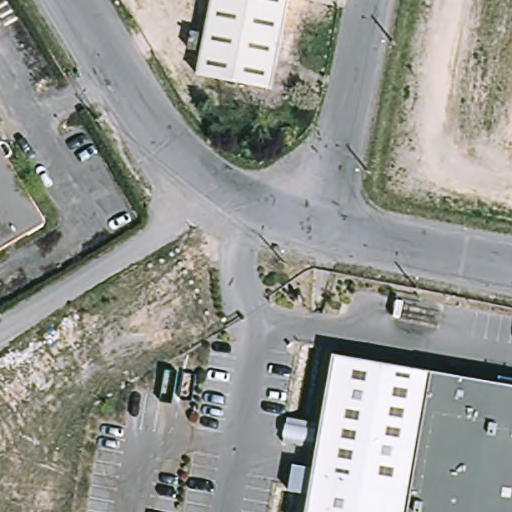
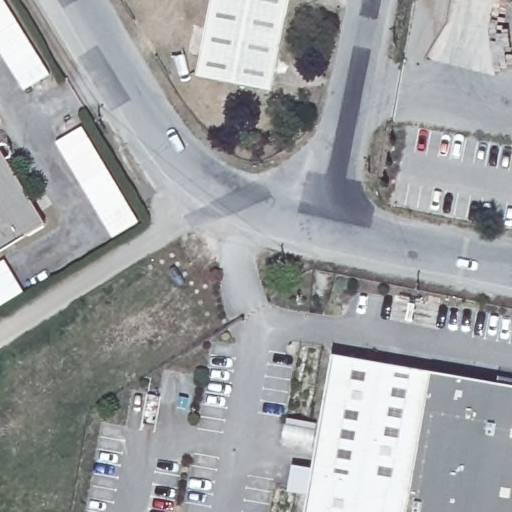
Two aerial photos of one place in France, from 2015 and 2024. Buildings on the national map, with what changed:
new [(4,0),(51,75),(25,90),(0,51),(0,0),(4,0)]
unchanged [(202,76),(218,0),(293,0),(274,90),(202,76)]
new [(57,142),(85,126),(141,221),(113,237),(57,142)]
unchanged [(48,225),(0,254),(0,147),(48,225)]
unchanged [(299,466),(320,470),(340,356),(512,388),(512,512),(312,512),(315,497),(294,493),(299,466)]

